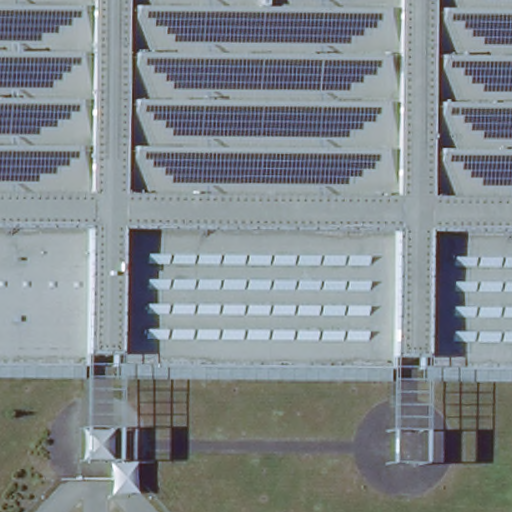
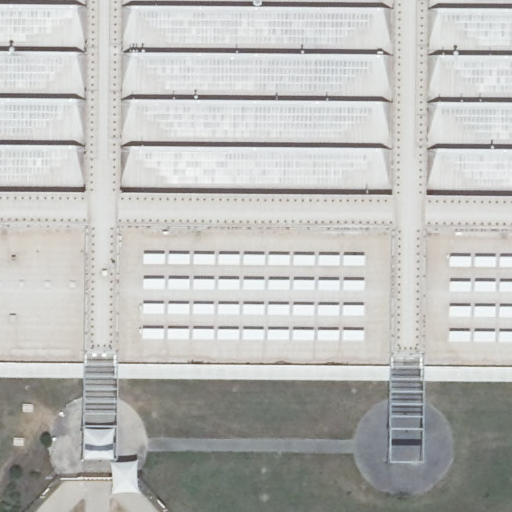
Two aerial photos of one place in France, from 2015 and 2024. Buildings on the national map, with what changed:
unchanged [(422,370),(419,370),(419,358),(391,358),(391,369),(389,369),(115,367),(112,367),(112,355),(84,355),(84,367),(81,367),(0,366),(0,0),(512,0),(512,370),(422,370)]
unchanged [(84,367),(84,355),(112,355),(112,367),(115,367),(114,462),(81,461),(81,367),(84,367)]
unchanged [(391,369),(391,358),(419,358),(419,370),(422,370),(421,465),(388,464),(389,369),(391,369)]

